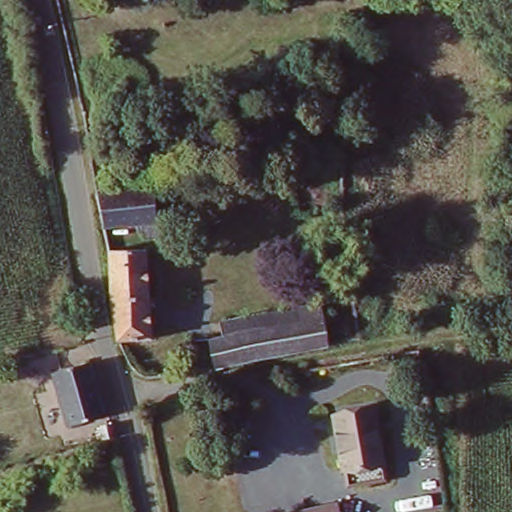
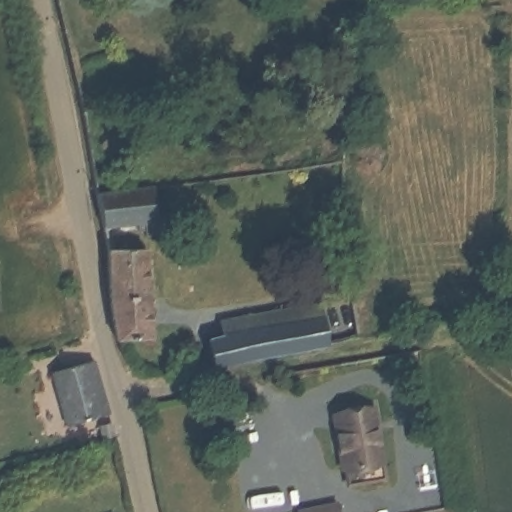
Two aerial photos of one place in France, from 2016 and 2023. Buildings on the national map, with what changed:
unchanged [(175,186),(165,188),(165,181),(174,180),(175,186)]
unchanged [(154,218),(160,216),(161,231),(145,233),(143,226),(137,226),(135,220),(124,221),(130,246),(143,245),(146,335),(113,336),(106,283),(106,250),(95,191),(150,183),(154,218)]
unchanged [(212,320),(310,299),(312,313),(215,333),(212,320)]
unchanged [(204,335),(215,333),(312,313),(319,311),(325,343),(209,366),(204,335)]
unchanged [(65,419),(53,368),(94,357),(109,408),(65,419)]
unchanged [(385,484),(348,488),(346,470),(341,471),(335,415),(377,411),(385,484)]
unchanged [(101,420),(117,416),(122,432),(105,436),(101,420)]
unchanged [(344,512),(310,512),(343,506),(344,512)]

